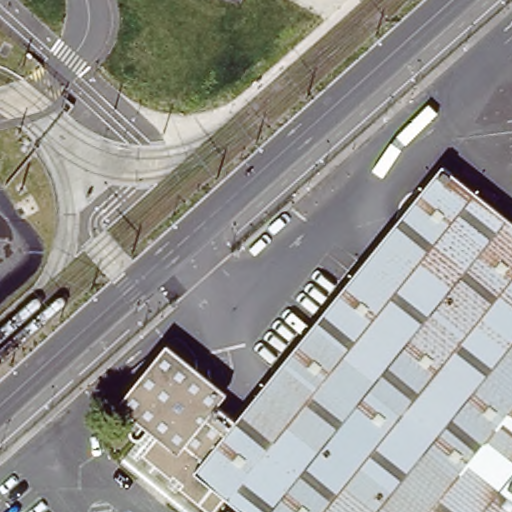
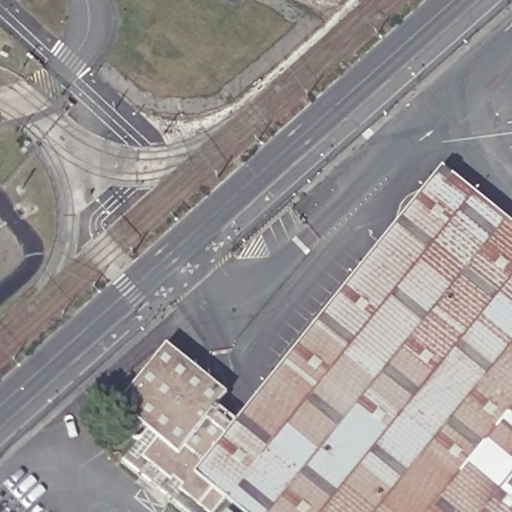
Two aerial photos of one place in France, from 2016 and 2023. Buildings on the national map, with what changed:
unchanged [(445,166),(512,221),(512,512),(241,512),(223,498),(214,512),(213,512),(144,459),(157,436),(124,404),(170,342),(230,391),(222,404),(239,419),(445,166)]

